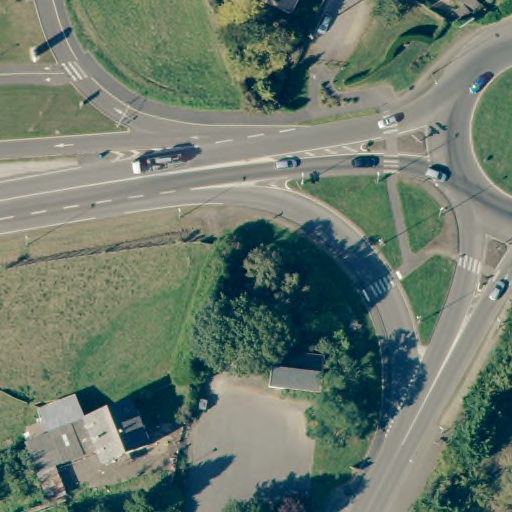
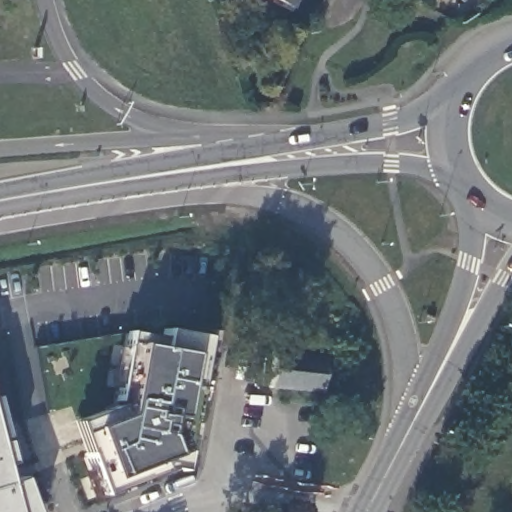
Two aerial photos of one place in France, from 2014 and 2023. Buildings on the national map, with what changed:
unchanged [(290,6),(275,0),(293,0),(290,6)]
new [(180,470),(167,468),(100,493),(73,424),(117,406),(129,333),(162,338),(164,330),(205,337),(180,470)]
unchanged [(275,383),(278,350),(331,357),(327,390),(275,383)]
demolished [(152,449),(107,467),(88,424),(134,405),(152,449)]
demolished [(52,438),(66,433),(68,432),(71,431),(75,429),(82,446),(50,459),(36,464),(29,447),(52,438)]
new [(1,466),(6,483),(19,478),(32,512),(0,512),(0,430),(9,463),(1,466)]

